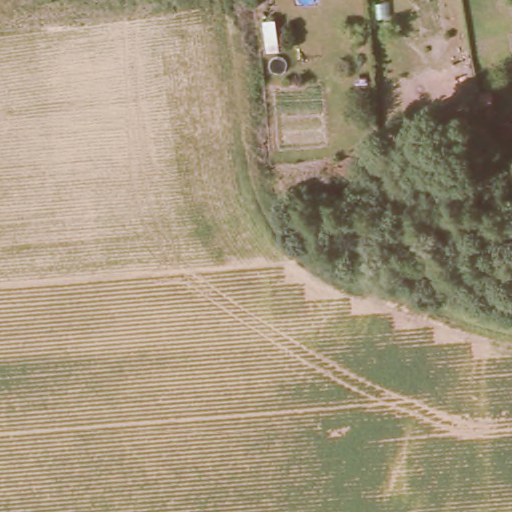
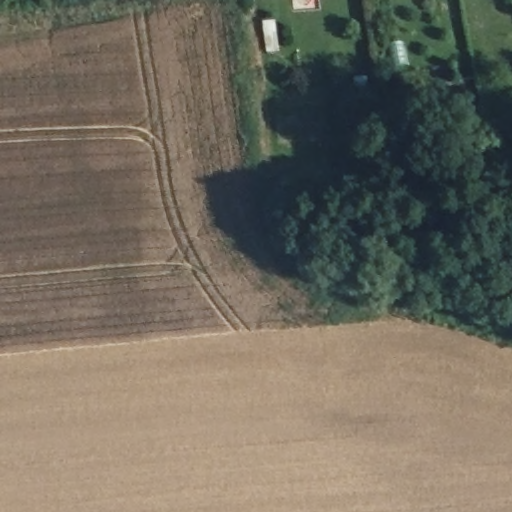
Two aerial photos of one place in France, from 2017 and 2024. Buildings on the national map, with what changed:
unchanged [(490,92),(492,107),(480,109),(477,94),(490,92)]
unchanged [(512,130),(512,138),(498,139),(496,129),(511,127),(512,130)]

